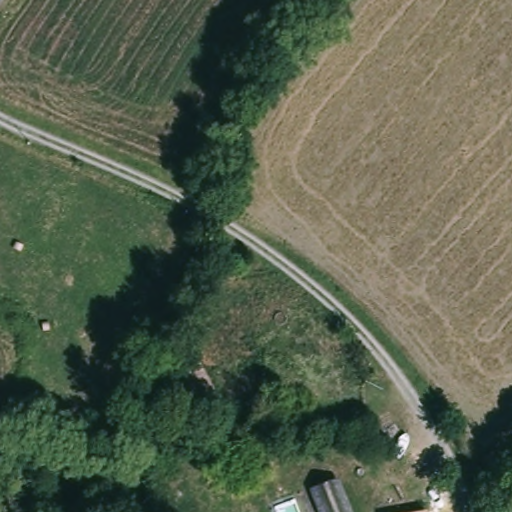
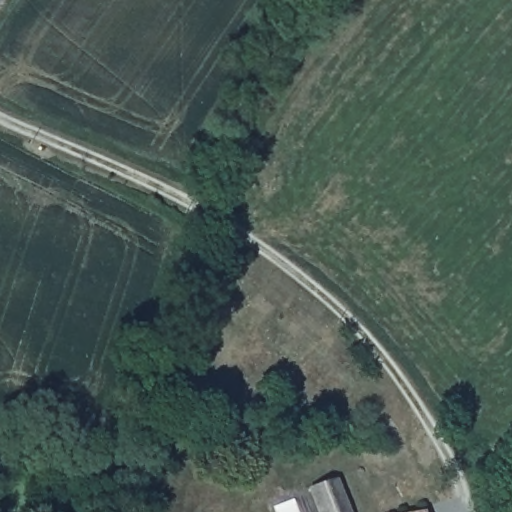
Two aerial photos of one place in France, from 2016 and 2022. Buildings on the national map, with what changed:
unchanged [(343,512),(314,512),(309,493),(335,486),(343,512)]

